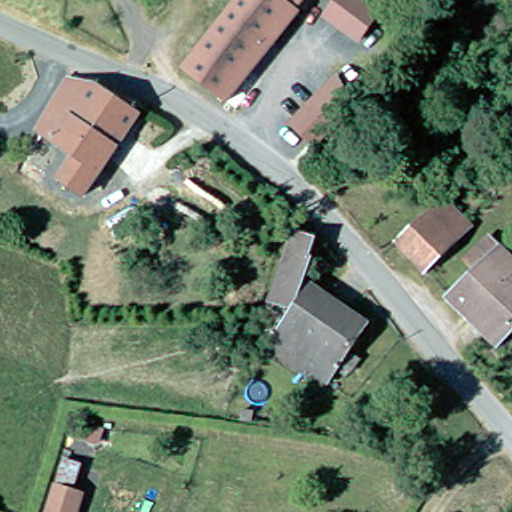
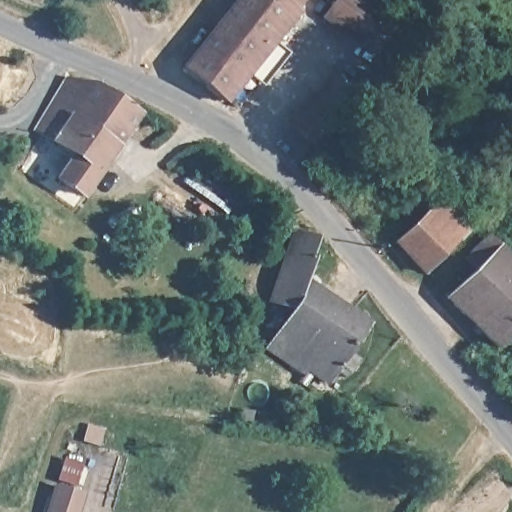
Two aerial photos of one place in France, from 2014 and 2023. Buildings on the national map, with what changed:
unchanged [(227,101),(187,69),(241,0),(284,0),(299,12),(227,101)]
unchanged [(392,10),(393,11),(371,38),(371,37),(339,13),(349,0),(379,0),(392,10)]
unchanged [(369,106),(364,111),(333,146),(308,124),(348,80),(351,76),(369,106)]
unchanged [(91,92),(98,84),(143,114),(88,194),(64,177),(78,155),(40,127),(73,79),(91,92)]
unchanged [(418,272),(389,241),(436,198),(460,224),(446,238),(449,244),(418,272)]
unchanged [(366,366),(357,378),(349,372),(336,390),(316,375),(314,378),(277,350),(299,315),(279,308),(303,238),(324,245),(314,284),(379,330),(358,359),(366,366)]
unchanged [(449,292),(500,243),(512,255),(512,327),(498,341),(449,292)]
unchanged [(76,512),(49,512),(57,486),(81,493),(76,512)]

